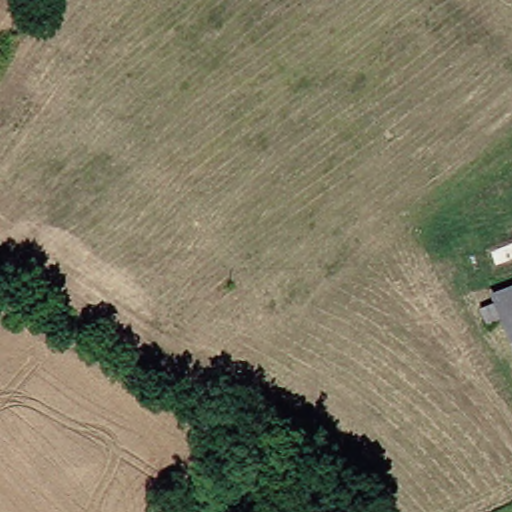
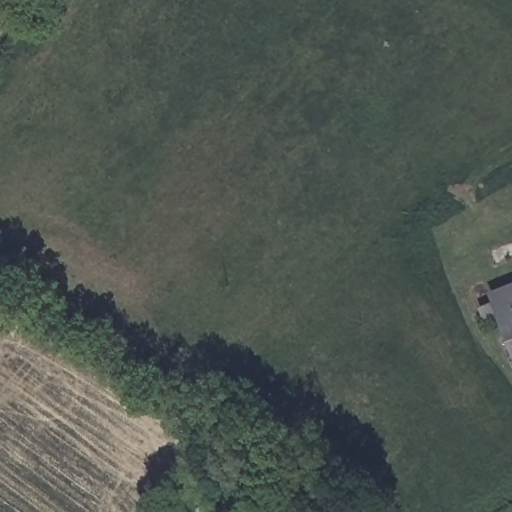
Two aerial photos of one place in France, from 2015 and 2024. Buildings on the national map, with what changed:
unchanged [(479,297),(512,277),(512,349),(479,297)]

